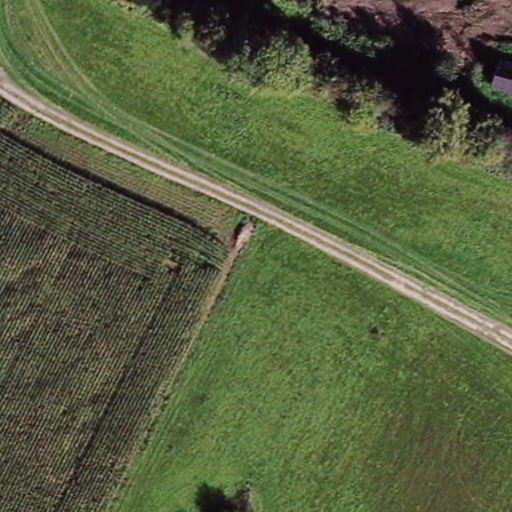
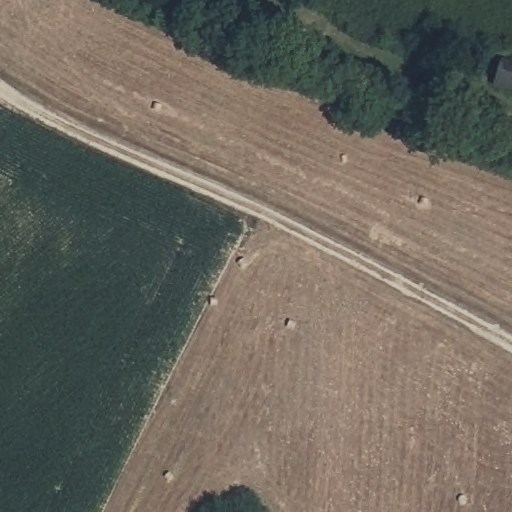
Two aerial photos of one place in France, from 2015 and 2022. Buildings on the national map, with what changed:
unchanged [(512,65),(512,94),(500,90),(511,65),(512,65)]

